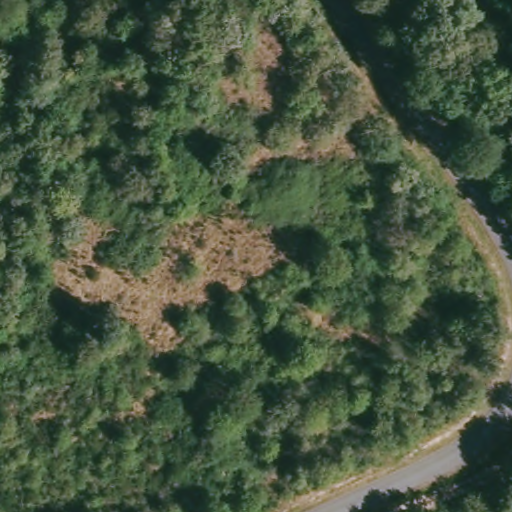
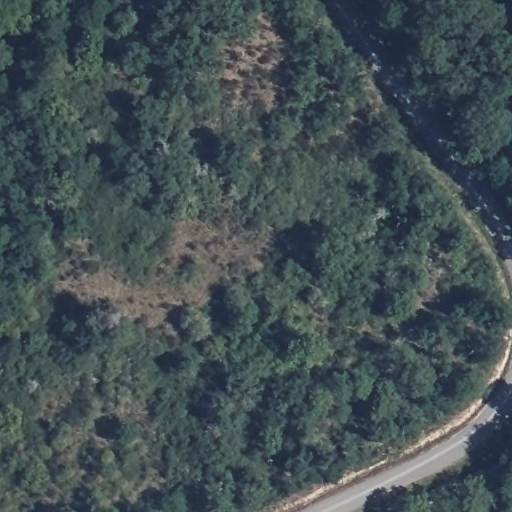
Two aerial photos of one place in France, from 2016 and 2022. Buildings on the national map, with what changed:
unchanged [(473,512),(450,512),(448,509),(470,493),(481,508),(473,512)]

